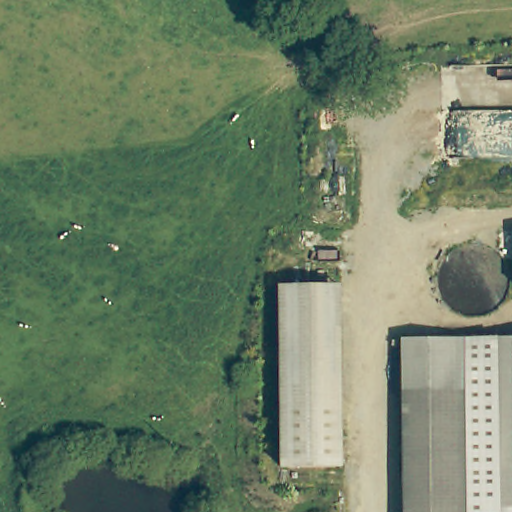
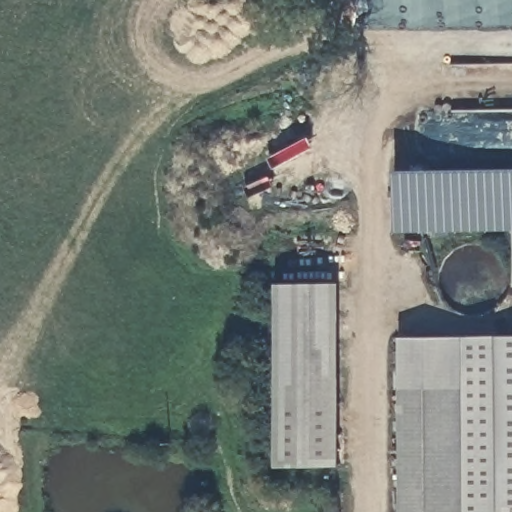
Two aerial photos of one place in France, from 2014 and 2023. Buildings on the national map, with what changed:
new [(397,170),(512,169),(512,229),(395,231),(397,170)]
unchanged [(281,469),(278,285),(338,283),(340,466),(281,469)]
unchanged [(512,336),(512,512),(402,512),(399,337),(512,336)]

